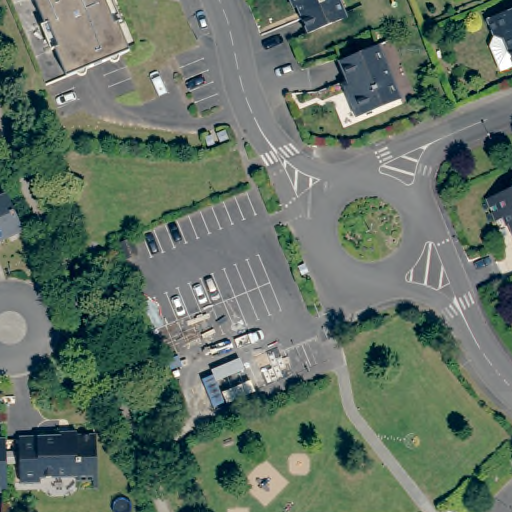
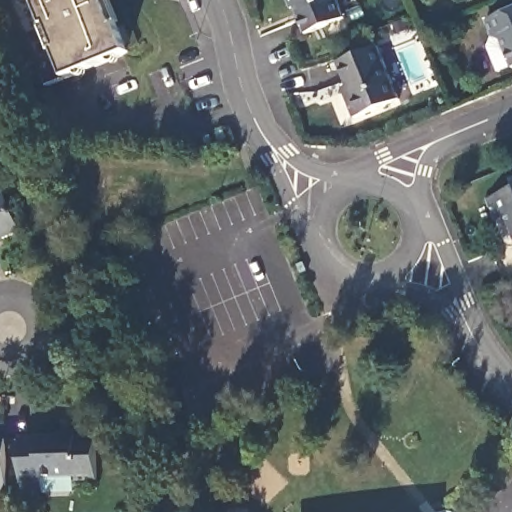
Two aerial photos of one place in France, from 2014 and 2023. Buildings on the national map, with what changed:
unchanged [(122,22),(125,21),(135,47),(52,80),(19,0),(113,0),(122,22)]
unchanged [(289,0),(338,0),(347,20),(307,35),(297,10),(293,11),(289,0)]
unchanged [(512,13),(512,59),(505,42),(494,37),(488,22),(512,13)]
unchanged [(378,47),(400,101),(356,118),(346,97),(354,95),(340,61),(378,47)]
unchanged [(507,246),(497,223),(487,227),(479,204),(509,191),(506,185),(512,183),(512,248),(507,246)]
unchanged [(0,240),(0,201),(14,235),(0,240)]
unchanged [(120,242),(132,238),(139,255),(127,259),(120,242)]
unchanged [(55,433),(55,431),(73,430),(73,432),(91,432),(95,477),(72,477),(72,475),(37,475),(37,478),(18,480),(16,435),(55,433)]
unchanged [(0,490),(0,436),(2,436),(4,490),(0,490)]

